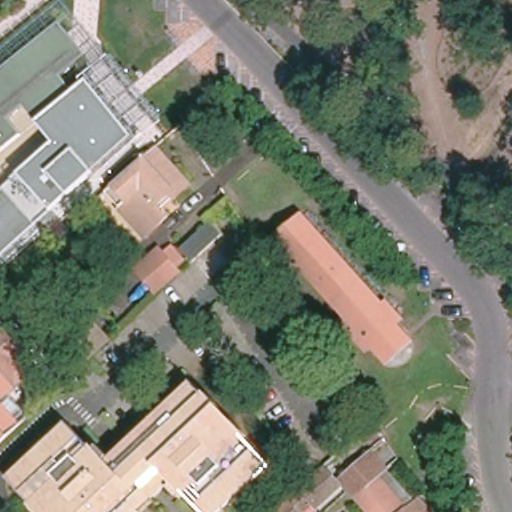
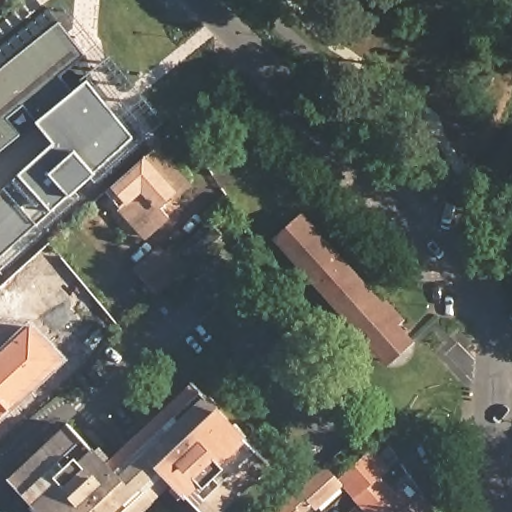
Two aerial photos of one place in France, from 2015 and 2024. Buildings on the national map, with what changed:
unchanged [(56,16),(84,50),(59,70),(72,88),(72,89),(65,94),(56,101),(55,101),(54,103),(46,109),(45,110),(33,120),(9,139),(9,140),(0,146),(0,62),(56,16)]
unchanged [(17,180),(16,178),(55,146),(33,120),(45,110),(46,109),(54,103),(55,101),(56,101),(65,94),(72,89),(72,88),(84,80),(135,139),(52,209),(57,214),(0,263),(0,195),(17,180)]
unchanged [(191,185),(176,199),(171,195),(159,205),(168,216),(146,236),(120,208),(106,192),(156,149),(157,147),(191,185)]
unchanged [(188,263),(185,260),(176,250),(205,222),(217,235),(188,263)]
unchanged [(401,325),(396,330),(402,336),(395,342),(400,347),(389,356),(385,352),(378,358),(372,351),(367,355),(353,340),(358,335),(321,294),(277,244),(301,222),(346,272),(383,313),(387,310),(401,325)]
unchanged [(151,292),(132,270),(155,250),(174,272),(151,292)]
demolished [(0,288),(0,265),(11,277),(0,288)]
new [(31,322),(67,361),(0,421),(0,351),(31,322)]
demolished [(8,432),(0,423),(0,329),(4,325),(23,347),(15,354),(30,370),(9,389),(30,412),(8,432)]
unchanged [(70,426),(106,465),(155,420),(194,385),(270,465),(220,512),(201,512),(172,482),(141,512),(39,512),(10,482),(70,426)]
unchanged [(368,452),(382,469),(350,497),(336,481),(368,452)]
unchanged [(320,469),(332,482),(301,512),(273,512),(283,502),(282,500),(295,490),(296,491),(320,469)]
unchanged [(397,512),(363,512),(353,501),(365,491),(377,480),(402,507),(400,510),(397,512)]
unchanged [(402,507),(412,500),(423,512),(397,512),(400,510),(402,507)]

